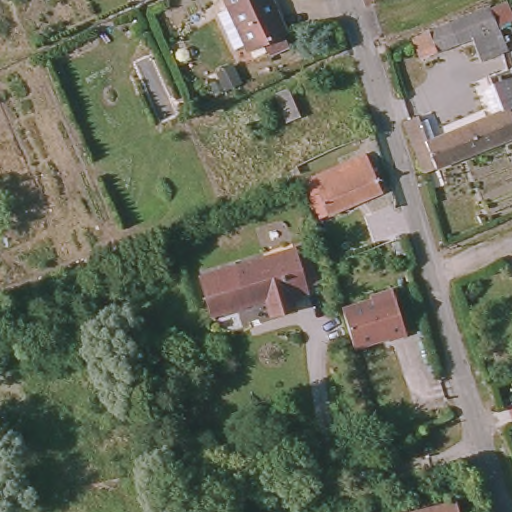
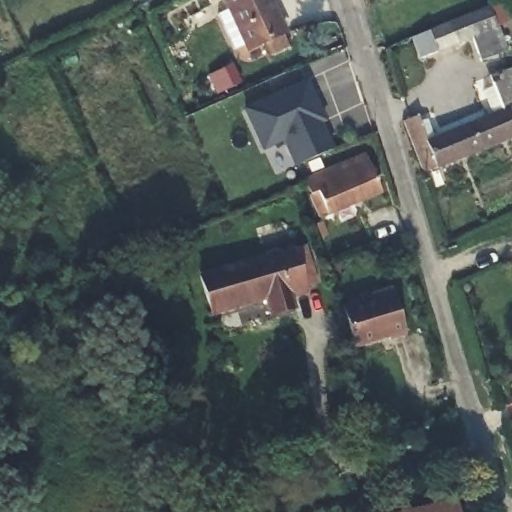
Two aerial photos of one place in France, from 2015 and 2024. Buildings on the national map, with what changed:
unchanged [(290,40),(253,54),(250,47),(237,52),(225,15),(235,11),(231,0),(273,0),(290,40)]
unchanged [(510,51),(500,55),(485,62),(475,40),(423,62),(412,39),(490,4),(510,51)]
unchanged [(512,137),(432,172),(410,125),(420,120),(430,142),(498,110),(484,79),(502,70),(512,91),(512,137)]
new [(327,122),(324,124),(335,147),(295,167),(283,142),(263,151),(243,109),(308,80),(327,122)]
demolished [(257,115),(275,110),(283,140),(266,145),(257,115)]
unchanged [(359,159),(360,157),(374,196),(319,217),(305,180),(359,159)]
unchanged [(288,248),(300,287),(291,290),(294,303),(265,312),(260,295),(205,310),(195,277),(288,248)]
unchanged [(341,306),(370,297),(368,293),(391,287),(405,335),(390,340),(388,337),(355,348),(341,306)]
unchanged [(452,512),(416,512),(450,502),(452,512)]

